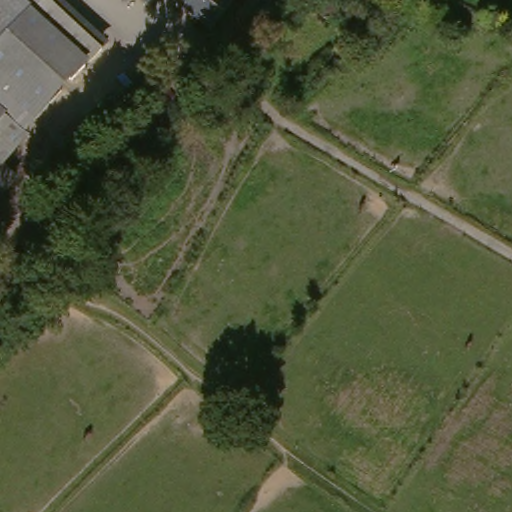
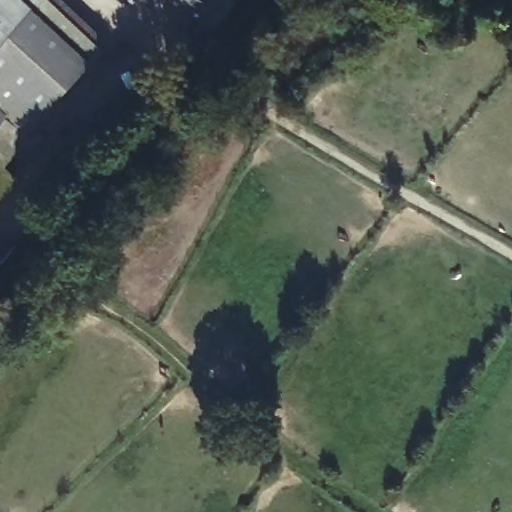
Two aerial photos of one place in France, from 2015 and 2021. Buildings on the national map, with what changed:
unchanged [(0,164),(0,0),(64,0),(108,40),(0,164)]
unchanged [(158,11),(145,0),(168,0),(158,11)]
unchanged [(230,18),(225,25),(215,38),(172,0),(243,0),(230,18)]
unchanged [(0,191),(0,165),(14,174),(0,191)]

